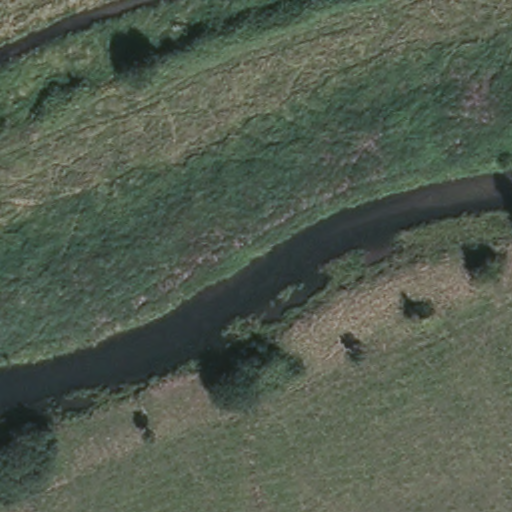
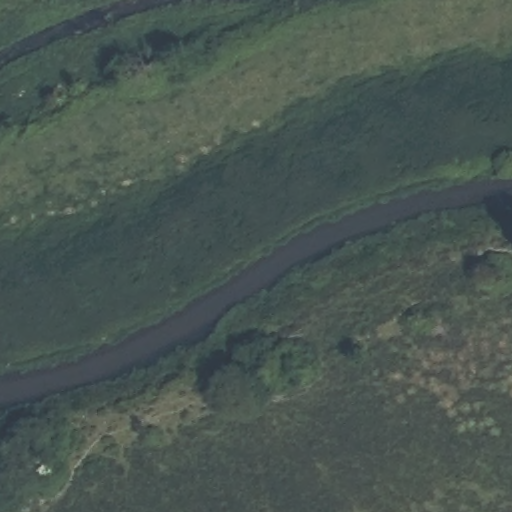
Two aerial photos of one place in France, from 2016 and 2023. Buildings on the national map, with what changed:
[]

